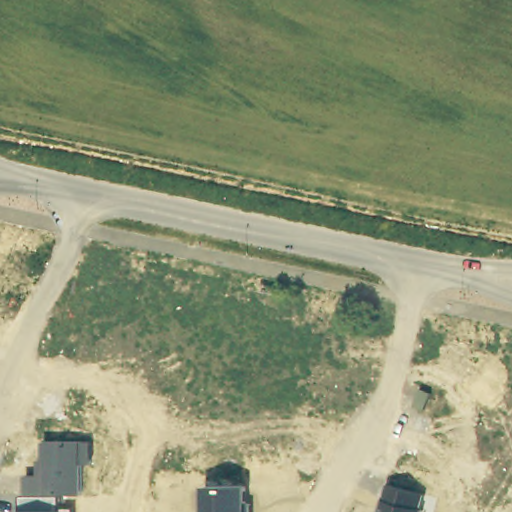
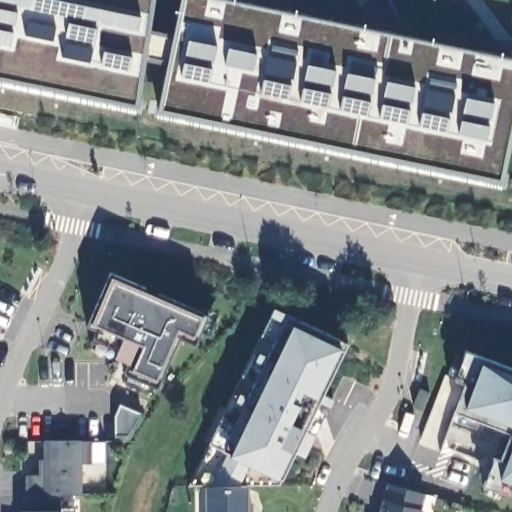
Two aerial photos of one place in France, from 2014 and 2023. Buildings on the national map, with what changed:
new [(159,109),(169,61),(148,57),(141,113),(0,84),(0,0),(154,0),(149,30),(176,37),(184,0),(222,0),(512,60),(512,141),(504,182),(159,109)]
new [(202,316),(205,308),(218,315),(210,337),(199,332),(197,337),(195,345),(176,337),(158,377),(155,388),(152,393),(125,381),(127,376),(131,370),(133,365),(90,347),(94,339),(100,328),(90,323),(111,276),(202,316)]
new [(324,395),(335,400),(305,458),(296,452),(284,480),(280,486),(249,486),(208,486),(188,487),(210,443),(275,308),(348,345),(324,395)]
new [(512,496),(484,487),(495,458),(500,460),(510,433),(457,412),(467,385),(456,380),(466,351),(512,369),(512,496)]
new [(123,407),(145,417),(130,439),(118,439),(117,419),(123,407)]
unchanged [(23,497),(25,497),(25,476),(39,476),(39,460),(44,460),(44,442),(93,442),(92,465),(84,465),(83,496),(61,496),(61,510),(75,509),(75,512),(22,512),(23,510),(23,497)]
unchanged [(249,486),(249,512),(208,512),(208,486),(249,486)]
unchanged [(425,496),(421,510),(424,511),(423,512),(381,512),(388,487),(425,496)]

